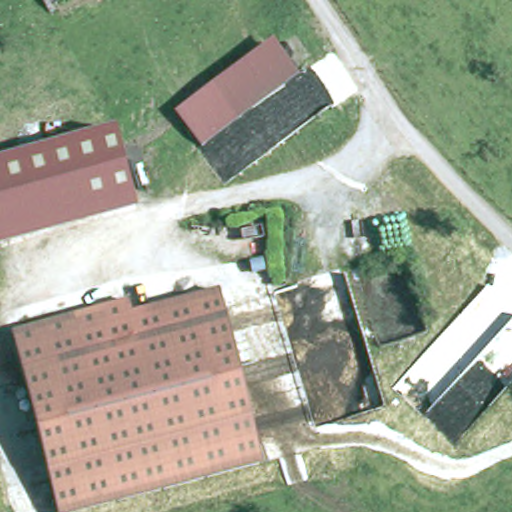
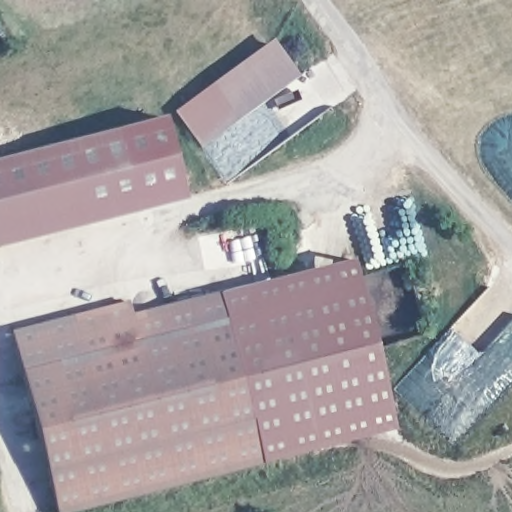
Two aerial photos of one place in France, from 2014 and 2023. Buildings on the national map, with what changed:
unchanged [(300,75),(202,146),(175,110),(272,38),(300,75)]
new [(166,117),(187,197),(142,209),(137,186),(122,129),(166,117)]
unchanged [(122,129),(137,186),(0,219),(0,158),(19,153),(122,129)]
unchanged [(142,209),(0,243),(0,219),(137,186),(142,209)]
new [(226,299),(346,266),(390,428),(267,464),(226,299)]
unchanged [(135,321),(226,299),(267,464),(67,512),(61,512),(18,336),(132,309),(135,321)]

